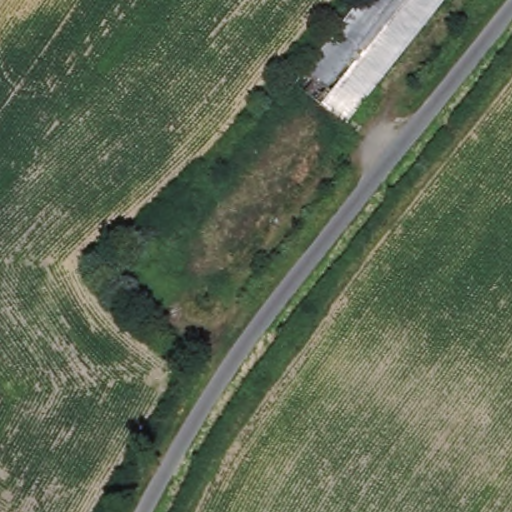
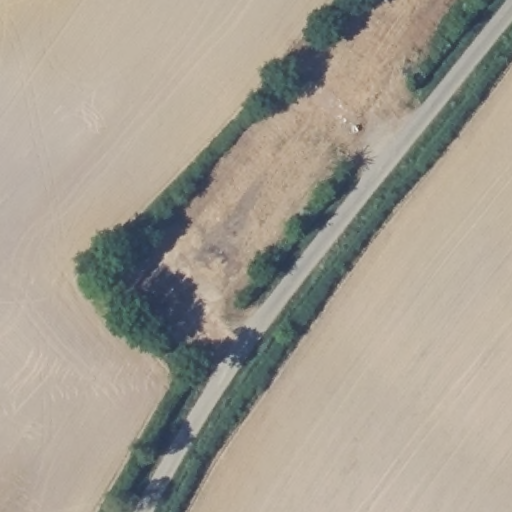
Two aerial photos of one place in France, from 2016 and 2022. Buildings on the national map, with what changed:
demolished [(296,85),(362,0),(447,0),(348,126),(296,85)]

